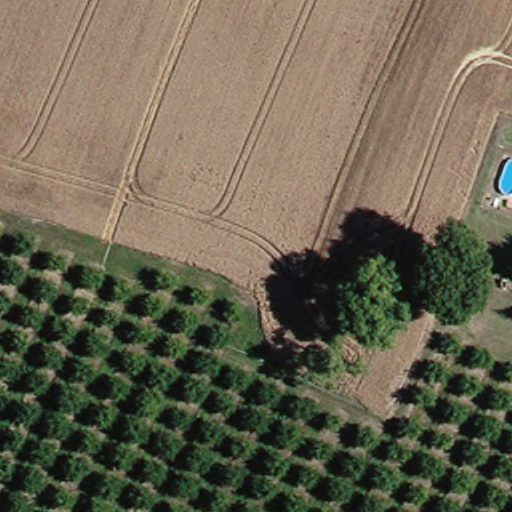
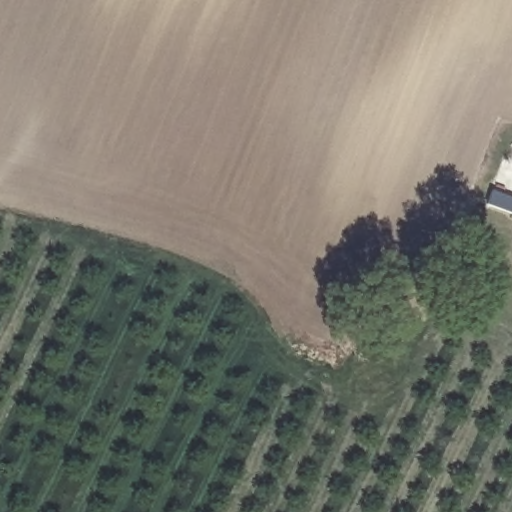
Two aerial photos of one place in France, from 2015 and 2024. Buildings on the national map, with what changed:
[]

